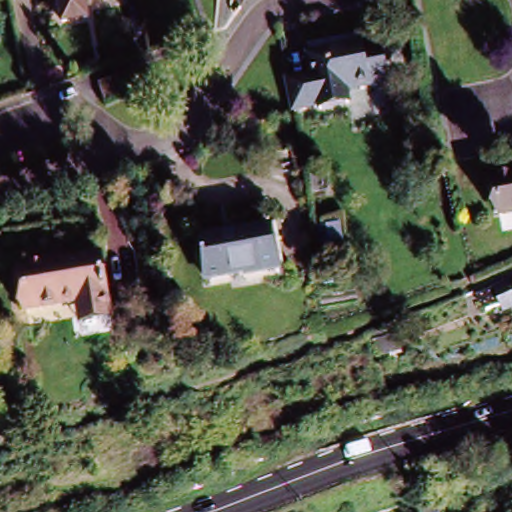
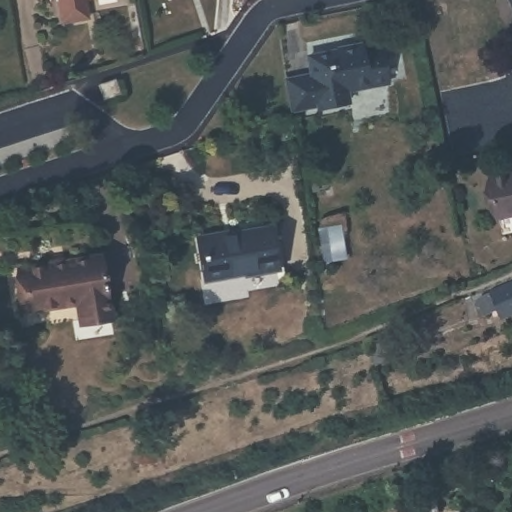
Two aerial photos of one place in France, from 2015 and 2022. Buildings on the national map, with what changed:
unchanged [(79,0),(83,23),(56,27),(52,0),(82,0),(79,0)]
unchanged [(348,101),(319,107),(318,105),(292,111),(286,79),(311,72),(309,55),(377,40),(379,46),(384,64),(387,80),(376,83),(346,90),(348,101)]
unchanged [(119,94),(103,100),(98,85),(113,79),(119,94)]
unchanged [(483,178),(512,172),(512,212),(491,216),(483,178)]
unchanged [(201,278),(198,263),(195,247),(196,247),(194,236),(219,231),(219,234),(266,226),(274,269),(239,274),(239,272),(201,278)]
unchanged [(18,307),(12,270),(40,265),(40,267),(58,265),(57,263),(97,257),(106,314),(107,320),(76,325),(73,303),(18,312),(18,307)]
unchanged [(499,312),(486,318),(479,303),(512,289),(512,311),(501,316),(499,312)]
unchanged [(402,357),(379,364),(374,345),(398,339),(402,357)]
unchanged [(419,512),(416,501),(435,496),(440,512),(419,512)]

